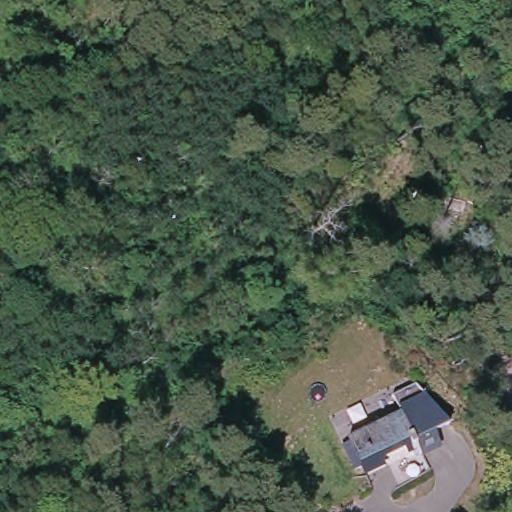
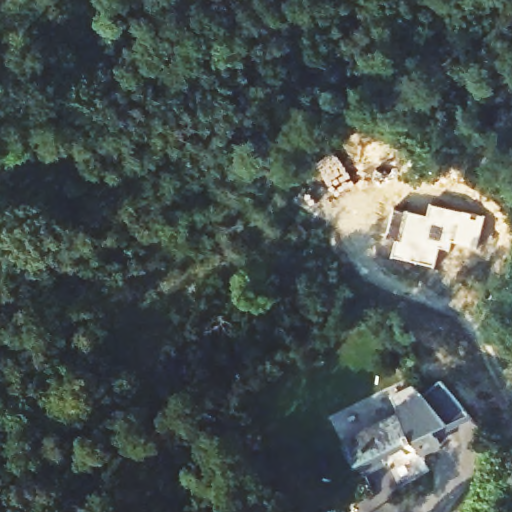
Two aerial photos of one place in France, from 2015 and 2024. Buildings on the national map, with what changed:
new [(477,247),(452,241),(450,250),(439,246),(434,266),(392,256),(397,238),(387,236),(395,207),(428,215),(431,203),(485,216),(477,247)]
unchanged [(394,388),(417,376),(454,423),(439,430),(445,444),(426,453),(420,440),(403,406),(394,388)]
unchanged [(415,442),(414,441),(407,444),(405,438),(400,440),(382,448),(385,454),(367,465),(357,442),(352,432),(403,406),(420,440),(415,442)]

